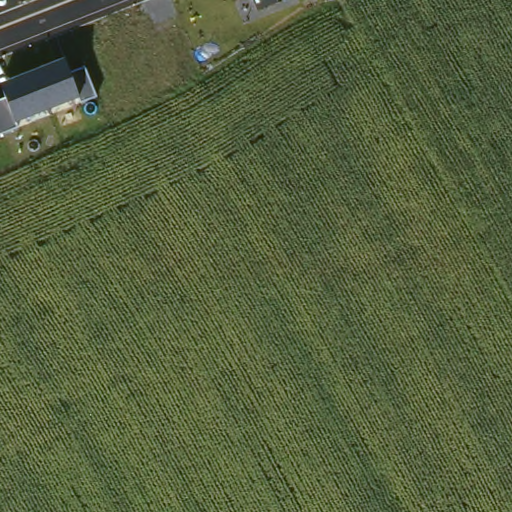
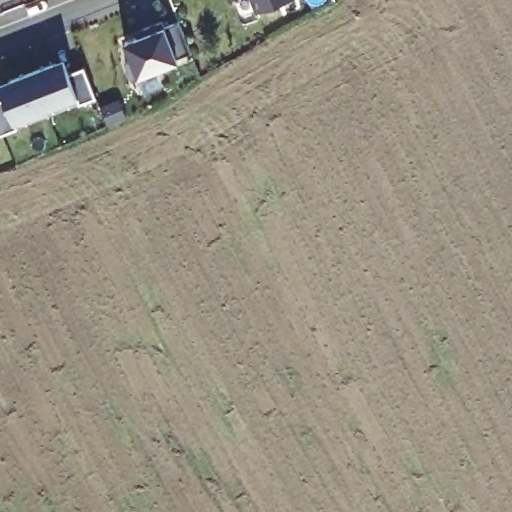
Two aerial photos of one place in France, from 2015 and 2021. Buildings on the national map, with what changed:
unchanged [(252,0),(284,0),(257,11),(252,0)]
new [(131,59),(125,42),(138,36),(137,31),(163,21),(166,26),(179,21),(191,52),(177,57),(179,62),(139,79),(137,75),(132,79),(126,62),(131,59)]
unchanged [(77,97),(17,124),(18,127),(0,135),(0,100),(5,99),(0,88),(0,85),(64,60),(70,73),(87,67),(99,95),(80,104),(77,97)]

